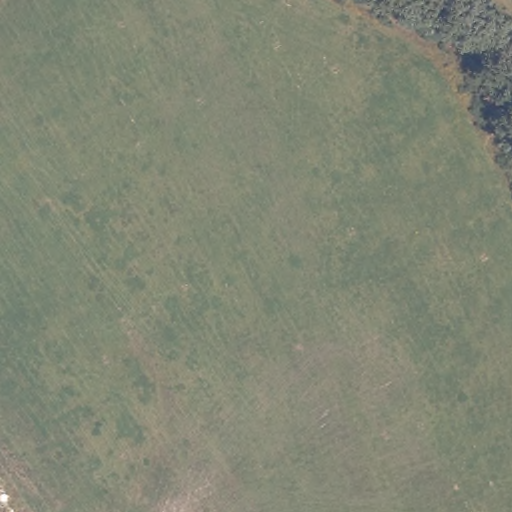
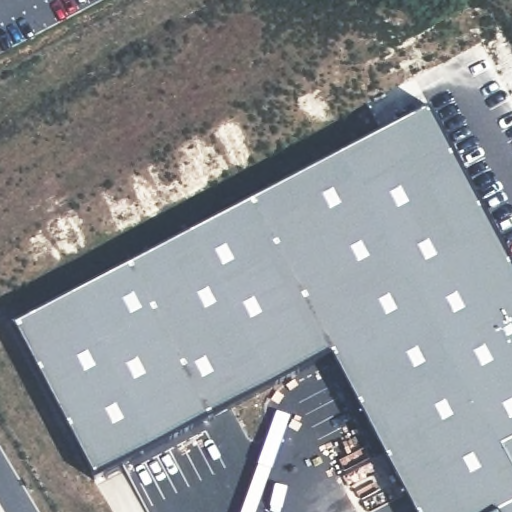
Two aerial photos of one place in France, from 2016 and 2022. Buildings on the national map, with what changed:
new [(431,104),(512,258),(512,512),(413,512),(330,353),(93,480),(14,325),(431,104)]

